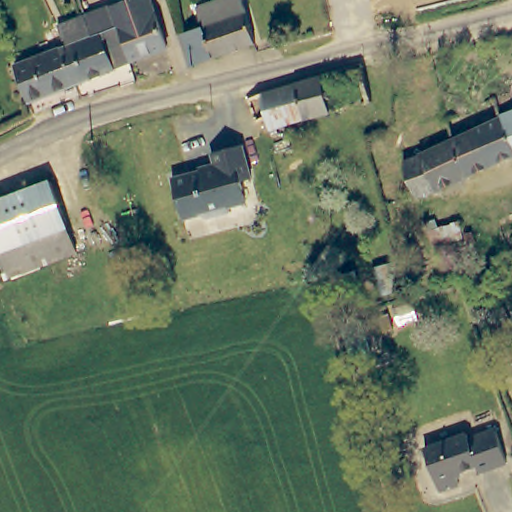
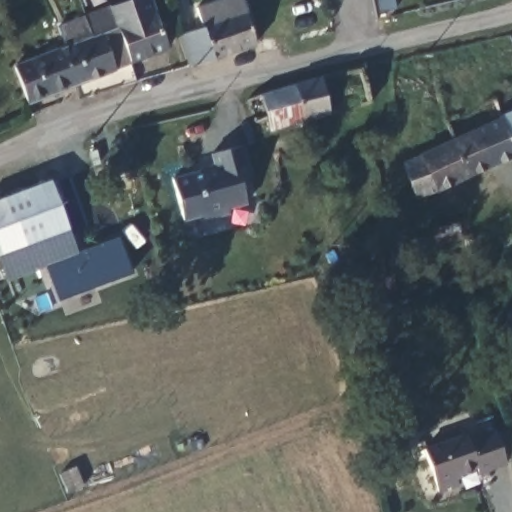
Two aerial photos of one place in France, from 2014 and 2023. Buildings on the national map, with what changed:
unchanged [(59,52),(64,50),(56,30),(80,20),(133,0),(151,0),(170,49),(131,65),(112,73),(73,89),(59,52)]
unchanged [(182,35),(204,29),(200,12),(236,0),(242,0),(247,16),(257,45),(192,67),(182,35)]
new [(381,11),(379,0),(393,0),(395,8),(381,11)]
unchanged [(30,63),(59,52),(73,89),(45,100),(28,107),(15,70),(30,63)]
unchanged [(269,123),(254,127),(246,100),(294,88),(318,82),(328,119),(303,126),(272,134),(269,123)]
unchanged [(512,113),(512,135),(504,116),(512,113)]
unchanged [(492,121),(504,116),(512,135),(512,155),(497,163),(471,174),(455,136),(492,121)]
unchanged [(471,174),(418,197),(402,161),(455,136),(471,174)]
unchanged [(244,202),(225,207),(226,212),(204,217),(198,213),(181,217),(171,176),(214,165),(211,152),(242,144),(250,178),(239,181),(244,202)]
unchanged [(7,278),(0,261),(0,201),(50,182),(67,224),(20,243),(30,269),(7,278)]
unchanged [(451,242),(435,247),(429,231),(458,220),(464,238),(451,242)]
unchanged [(77,250),(30,269),(20,243),(67,224),(77,250)]
new [(58,300),(45,263),(77,250),(120,235),(133,274),(58,300)]
unchanged [(509,457),(481,468),(479,462),(457,470),(461,480),(441,487),(426,445),(468,429),(470,434),(497,425),(509,457)]

